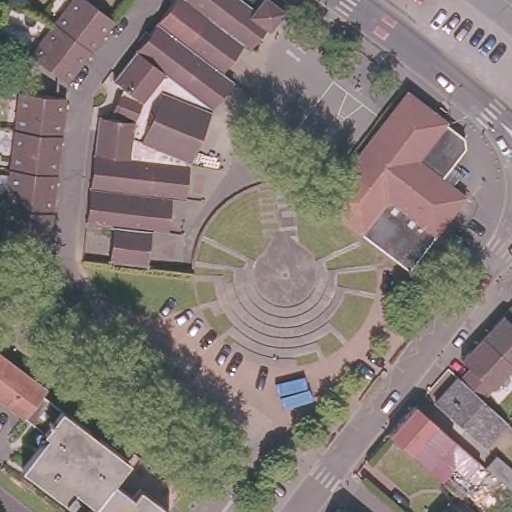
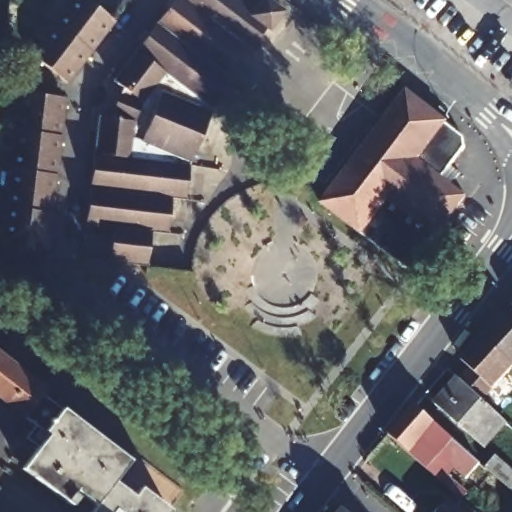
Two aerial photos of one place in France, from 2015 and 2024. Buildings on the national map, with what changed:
unchanged [(70,0),(84,0),(111,22),(88,51),(64,81),(60,79),(46,67),(26,52),(51,22),(70,0)]
unchanged [(189,196),(177,195),(173,234),(158,232),(154,269),(118,265),(121,230),(94,227),(101,119),(110,119),(116,80),(109,74),(148,25),(153,19),(154,17),(168,0),(175,0),(179,4),(182,0),(244,0),(256,9),(263,0),(270,0),(278,6),(284,12),(269,31),(266,29),(254,43),(251,41),(248,39),(223,70),(221,72),(233,80),(228,85),(209,109),(193,160),(189,196)]
unchanged [(450,124),(449,126),(467,140),(468,152),(456,169),(465,176),(456,188),(469,198),(444,230),(356,162),(411,93),(450,124)]
unchanged [(2,245),(3,210),(5,172),(8,132),(9,95),(61,99),(59,121),(58,136),(57,140),(53,175),(52,212),(50,251),(10,249),(1,248),(2,245)]
unchanged [(439,238),(349,170),(356,162),(444,230),(439,238)]
unchanged [(332,191),(346,174),(349,170),(439,238),(422,260),(413,273),(324,202),(332,191)]
unchanged [(458,376),(469,365),(459,357),(478,336),(509,302),(512,299),(512,363),(510,365),(480,397),(462,380),(458,376)]
unchanged [(40,389),(36,395),(121,463),(105,483),(124,498),(131,490),(158,512),(79,512),(18,462),(40,435),(0,402),(0,357),(40,389)]
unchanged [(484,445),(438,402),(448,392),(450,393),(462,380),(480,397),(484,401),(506,421),(484,445)]
unchanged [(450,465),(443,473),(461,490),(456,495),(383,432),(409,402),(474,460),(467,468),(461,475),(450,465)]
unchanged [(512,468),(512,493),(479,464),(491,450),(512,468)]
unchanged [(351,512),(332,512),(339,503),(351,512)]
unchanged [(458,512),(443,512),(449,505),(458,512)]

